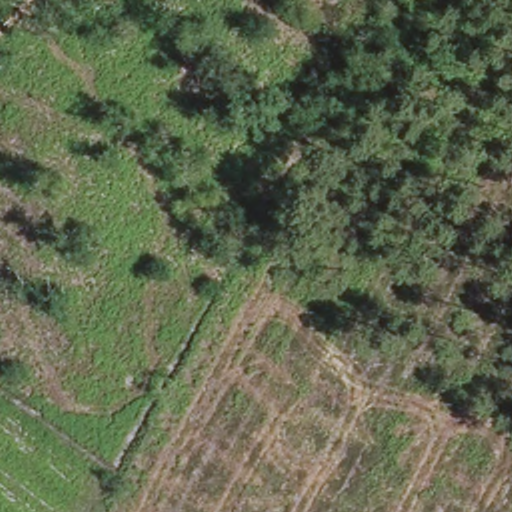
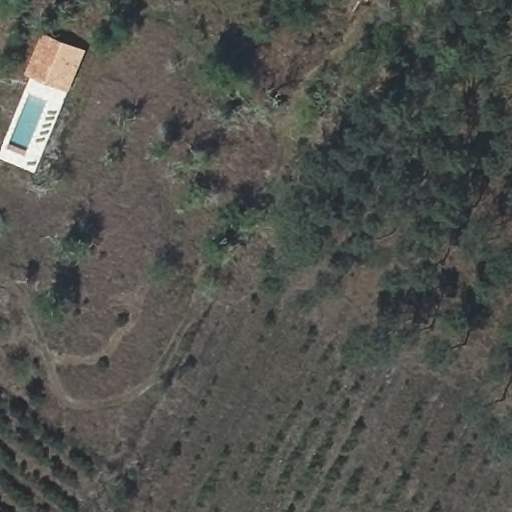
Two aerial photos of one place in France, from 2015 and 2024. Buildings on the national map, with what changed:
new [(46,32),(88,49),(71,92),(28,74),(46,32)]

